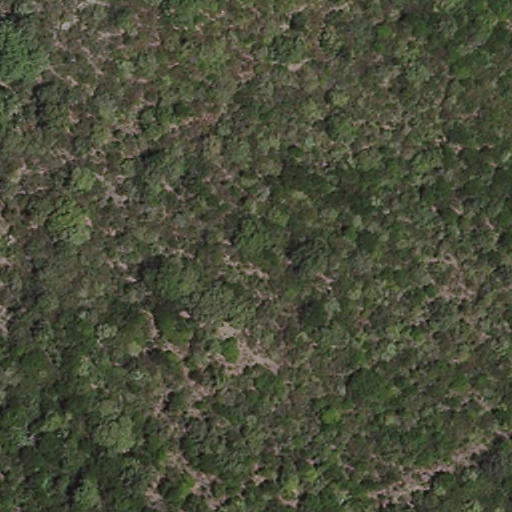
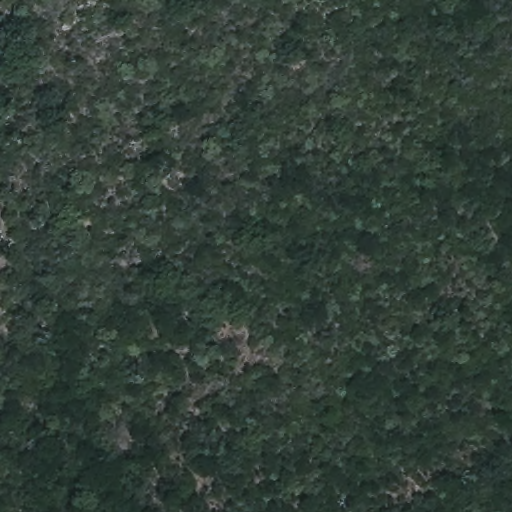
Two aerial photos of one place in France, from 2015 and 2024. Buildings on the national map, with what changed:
[]

